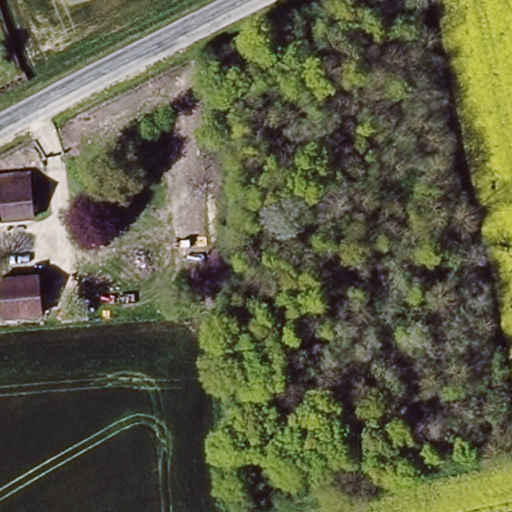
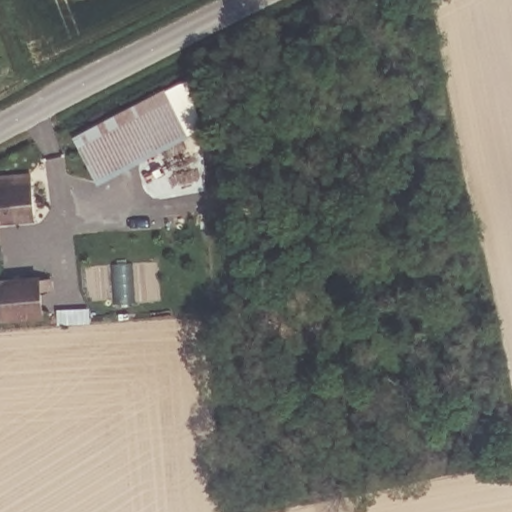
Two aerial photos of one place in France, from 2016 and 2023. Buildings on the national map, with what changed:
new [(95,180),(71,135),(163,86),(187,133),(95,180)]
unchanged [(34,174),(37,216),(0,220),(0,177),(34,174)]
unchanged [(53,278),(54,293),(44,294),(44,315),(0,316),(0,281),(53,278)]

